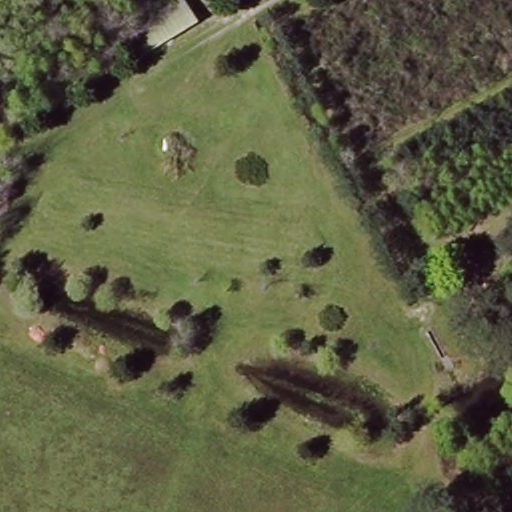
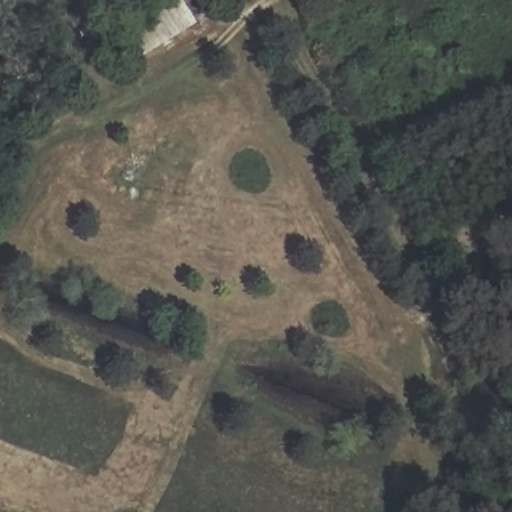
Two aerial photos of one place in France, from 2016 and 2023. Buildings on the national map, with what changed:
unchanged [(144,59),(130,21),(176,0),(190,0),(203,28),(144,59)]

